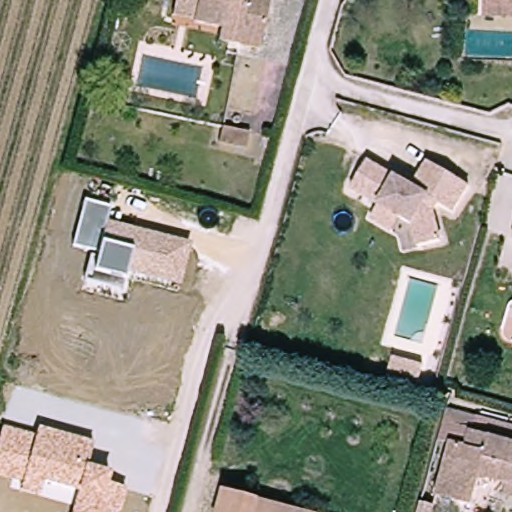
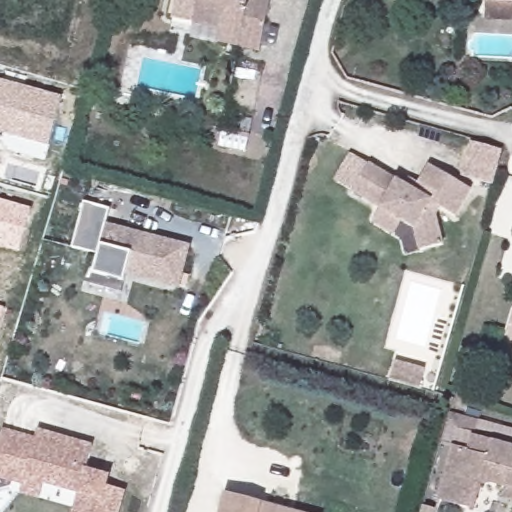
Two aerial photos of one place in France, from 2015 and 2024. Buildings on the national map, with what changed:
unchanged [(275,1),(263,51),(226,42),(230,31),(181,19),(186,0),(269,0),(275,1)]
unchanged [(493,4),(493,0),(512,0),(512,22),(492,22),(493,4)]
new [(0,132),(0,79),(62,96),(49,146),(0,132)]
unchanged [(377,228),(385,214),(355,199),(370,171),(406,190),(410,182),(421,187),(431,168),(473,190),(459,218),(443,210),(440,218),(446,249),(424,254),(420,232),(406,225),(398,240),(377,228)]
new [(0,245),(0,199),(32,207),(20,251),(0,245)]
unchanged [(190,246),(180,290),(127,276),(125,282),(121,292),(85,282),(90,260),(96,261),(97,255),(73,247),(83,203),(108,208),(106,224),(190,246)]
new [(5,307),(0,324),(0,306),(5,307)]
unchanged [(393,367),(425,375),(420,393),(389,385),(393,367)]
unchanged [(472,423),(468,438),(512,449),(512,492),(479,484),(473,509),(438,501),(450,449),(435,446),(443,415),(472,423)]
unchanged [(512,449),(468,438),(472,423),(512,434),(512,449)]
unchanged [(39,430),(90,445),(85,470),(110,476),(107,488),(124,491),(118,512),(73,512),(78,493),(43,485),(40,499),(20,494),(21,484),(0,479),(0,438),(2,430),(37,437),(39,430)]
unchanged [(295,512),(217,512),(221,494),(295,512)]

